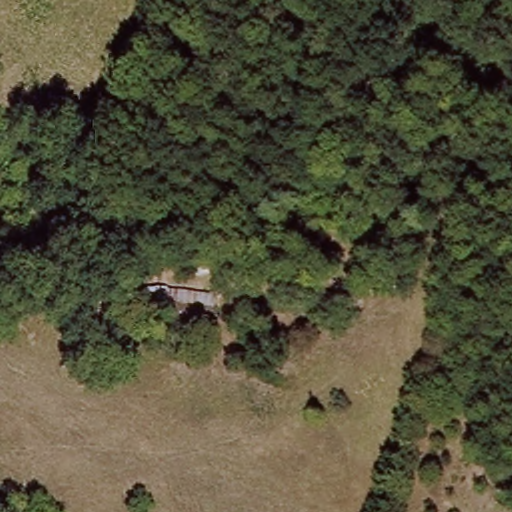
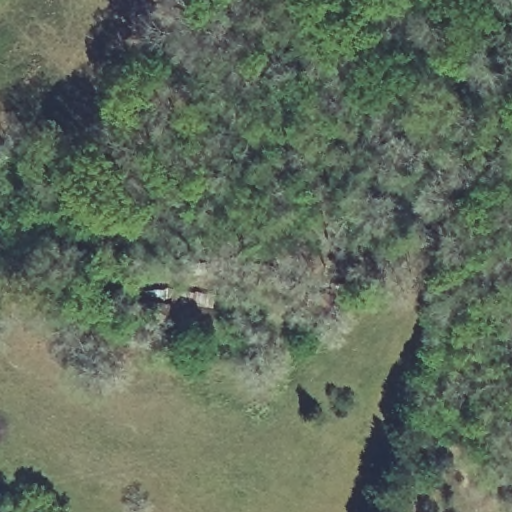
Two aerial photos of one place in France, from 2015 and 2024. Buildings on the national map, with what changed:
unchanged [(207,296),(208,310),(157,314),(156,300),(207,296)]

